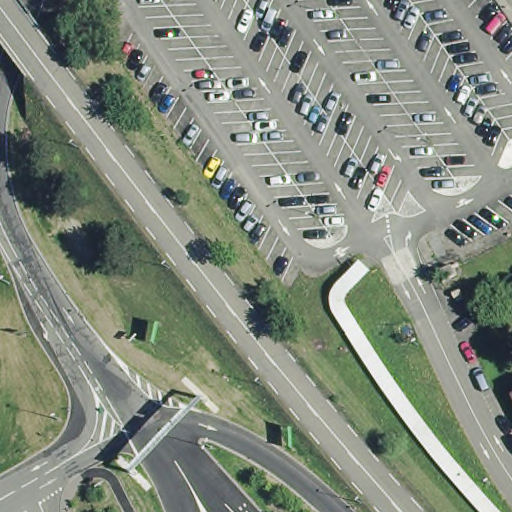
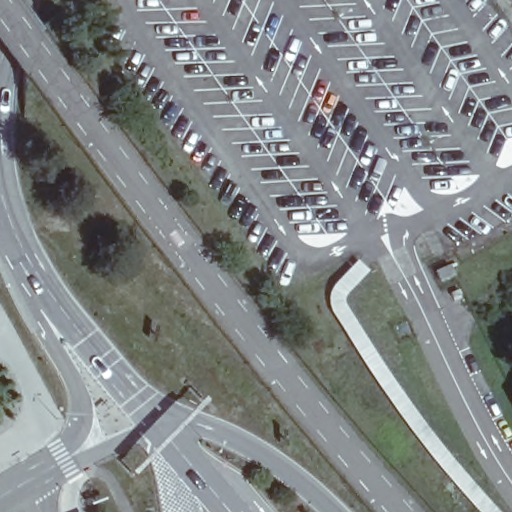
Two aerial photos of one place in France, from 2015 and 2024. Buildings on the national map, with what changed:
unchanged [(413,430),(343,321),(336,306),(336,289),(364,257),(372,266),(353,297),(416,394),(468,469),(508,512),(485,512),(413,430)]
unchanged [(456,277),(443,283),(439,273),(452,267),(456,277)]
unchanged [(506,401),(512,399),(512,414),(506,401)]

